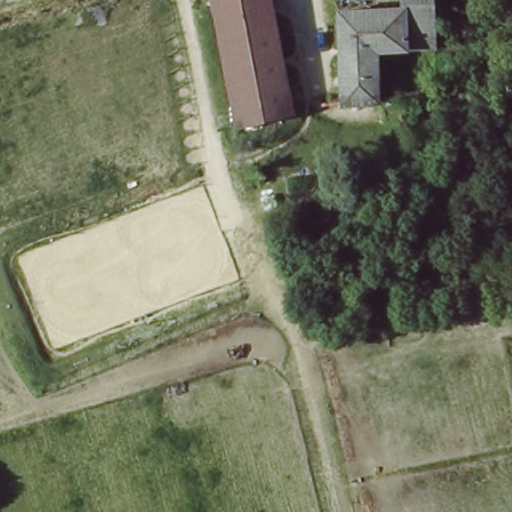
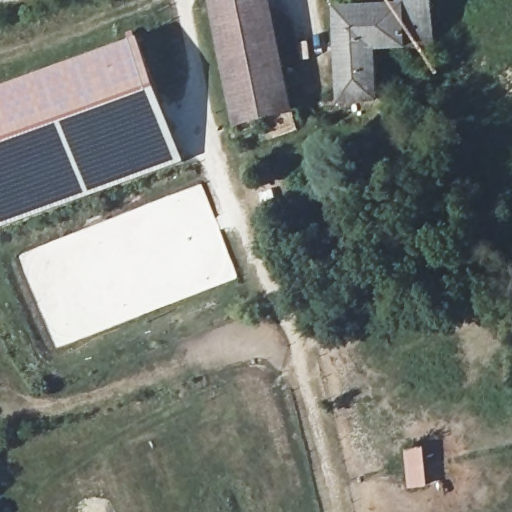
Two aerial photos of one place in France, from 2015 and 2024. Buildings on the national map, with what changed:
unchanged [(283,77),(292,114),(290,114),(237,126),(222,65),(209,1),(209,0),(266,0),(270,17),(283,77)]
unchanged [(355,39),(333,39),(330,6),(395,4),(395,0),(431,0),(432,5),(435,39),(429,39),(395,39),(375,39),(367,39),(355,39)]
new [(183,158),(6,223),(0,208),(0,87),(142,37),(183,158)]
unchanged [(340,100),(338,87),(333,39),(355,39),(367,39),(375,39),(375,54),(377,82),(377,99),(340,100)]
unchanged [(500,94),(488,96),(463,100),(460,81),(462,81),(512,70),(512,91),(500,94)]

